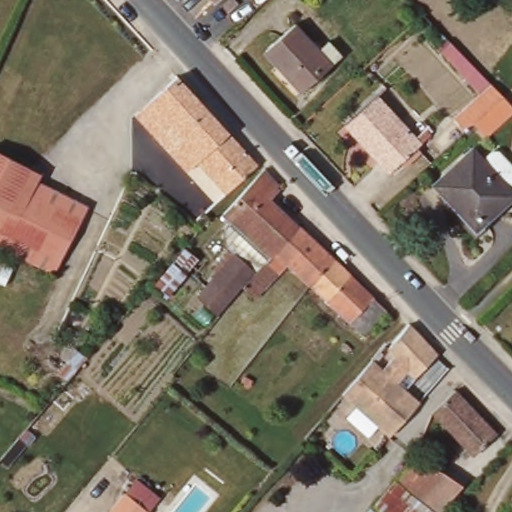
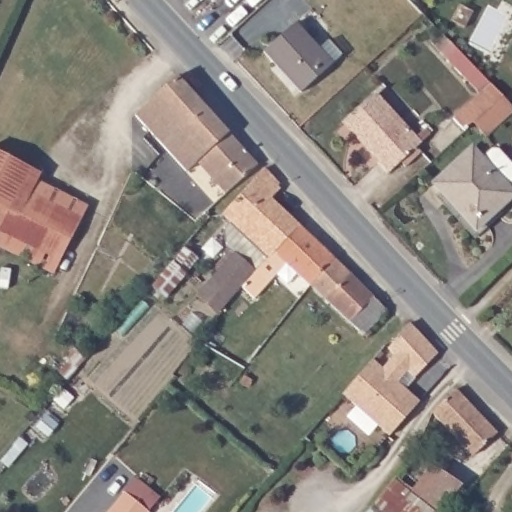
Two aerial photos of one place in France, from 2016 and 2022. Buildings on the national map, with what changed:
unchanged [(318,50),(328,41),(340,56),(300,92),(263,52),(294,24),(318,50)]
unchanged [(508,95),(470,130),(459,118),(485,94),(442,49),(452,40),(508,95)]
unchanged [(235,187),(208,157),(190,172),(139,115),(183,76),(262,163),(235,187)]
unchanged [(419,132),(428,125),(434,131),(394,167),(350,119),(381,91),(419,132)]
unchanged [(28,170),(43,178),(90,201),(58,268),(0,239),(0,144),(32,161),(28,170)]
unchanged [(452,198),(437,183),(476,147),(487,159),(496,151),(502,151),(512,162),(512,201),(503,210),(481,231),(452,198)]
unchanged [(269,168),(284,184),(283,186),(285,188),(275,199),(279,203),(303,224),(297,231),(291,237),(259,271),(259,270),(221,314),(203,298),(223,273),(219,269),(234,251),(229,247),(228,230),(234,223),(226,215),(269,169),(269,168)]
unchanged [(334,253),(338,257),(314,285),(291,264),(260,298),(247,287),(259,271),(291,237),(297,231),(303,224),(334,253)]
unchanged [(195,257),(183,272),(184,272),(164,297),(153,286),(185,248),(195,257)]
unchanged [(368,335),(314,285),(338,257),(392,310),(368,335)]
unchanged [(437,354),(413,377),(407,371),(397,383),(419,403),(389,437),(342,395),(372,362),(383,371),(395,357),(388,349),(409,325),(437,354)]
unchanged [(461,389),(501,433),(477,455),(437,411),(461,389)]
unchanged [(427,461),(436,466),(443,471),(461,483),(439,511),(438,512),(366,512),(414,454),(427,461)]
unchanged [(152,512),(113,512),(129,492),(152,512)]

